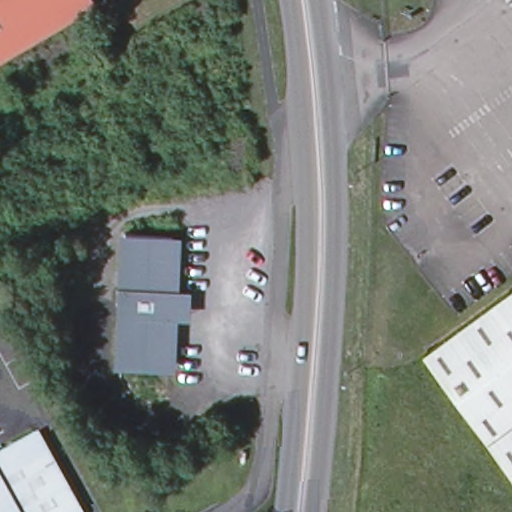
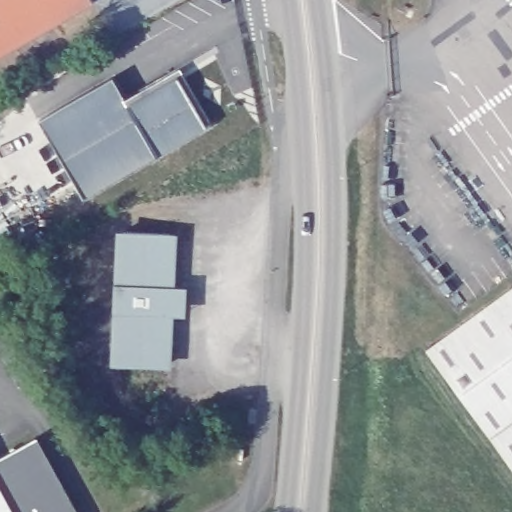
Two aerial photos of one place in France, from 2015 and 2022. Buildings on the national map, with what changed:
unchanged [(17,46),(0,8),(0,0),(87,0),(90,4),(17,46)]
unchanged [(0,56),(0,8),(17,46),(0,56)]
new [(40,119),(115,78),(127,97),(183,67),(214,123),(207,127),(157,156),(85,196),(40,119)]
unchanged [(172,257),(177,257),(175,288),(170,288),(170,301),(169,313),(175,313),(173,344),(167,344),(167,367),(120,364),(122,312),(122,311),(128,311),(129,286),(123,286),(126,233),(172,235),(172,257)]
unchanged [(512,286),(512,466),(425,348),(512,286)]
unchanged [(40,433),(83,512),(20,512),(0,476),(0,454),(40,433)]
unchanged [(20,512),(0,512),(0,476),(20,512)]

